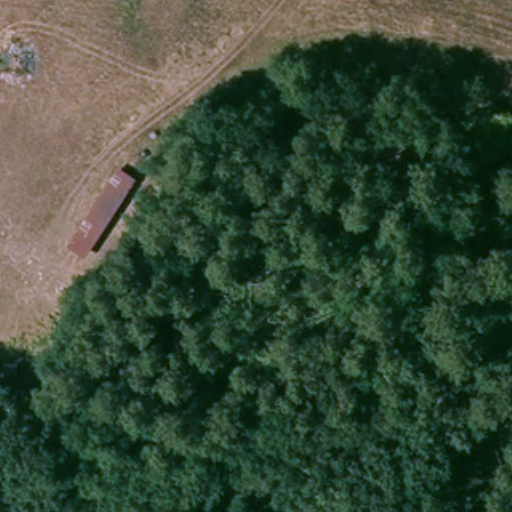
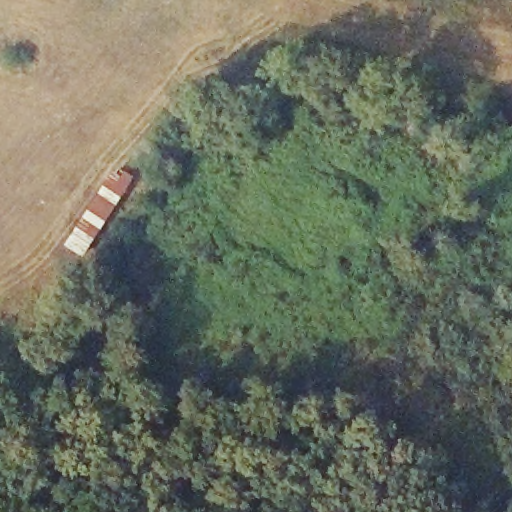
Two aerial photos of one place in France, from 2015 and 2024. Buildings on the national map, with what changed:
unchanged [(79,260),(61,245),(114,168),(133,182),(79,260)]

